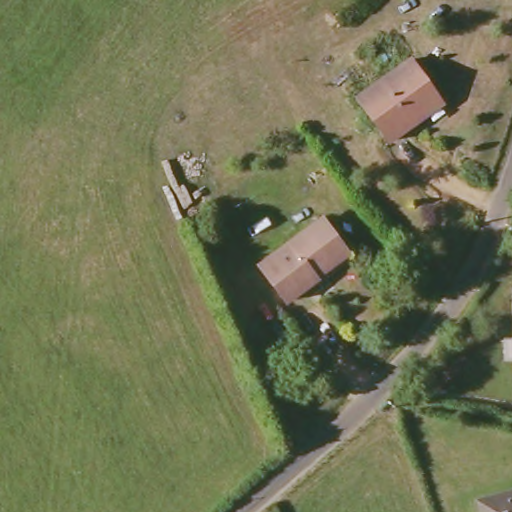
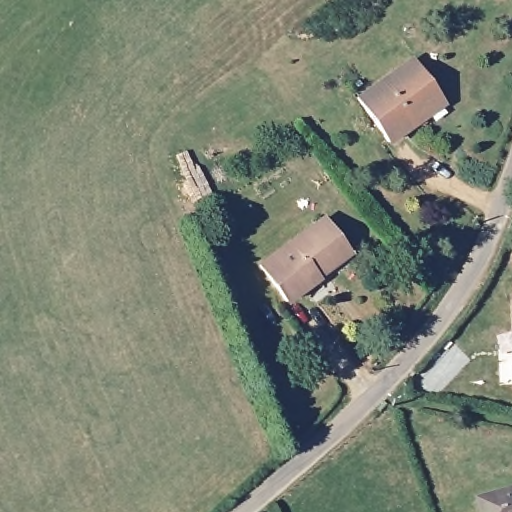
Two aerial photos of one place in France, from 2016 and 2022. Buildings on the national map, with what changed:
unchanged [(408,137),(397,147),(362,104),(410,62),(440,102),(444,107),(408,137)]
unchanged [(310,290),(288,304),(262,265),(329,222),(350,255),(354,263),(310,290)]
unchanged [(512,497),(512,512),(486,512),(484,502),(512,497)]

